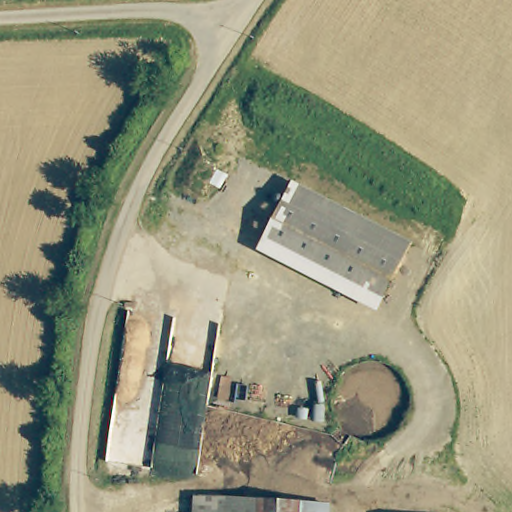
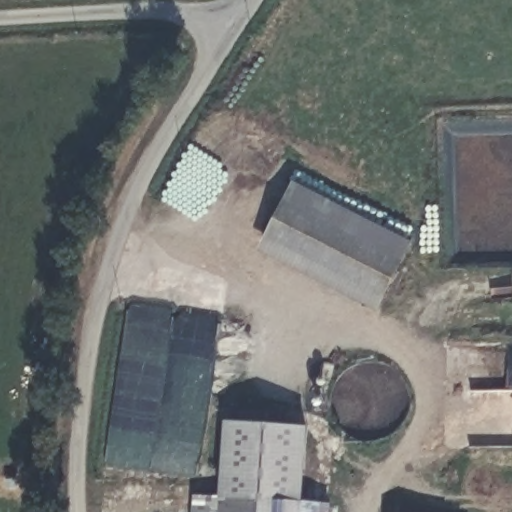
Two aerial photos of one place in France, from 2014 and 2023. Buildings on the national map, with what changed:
unchanged [(257,250),(292,181),(412,243),(378,311),(257,250)]
new [(218,495),(224,420),(305,426),(301,500),(218,495)]
unchanged [(331,512),(196,512),(197,494),(331,502),(331,512)]

